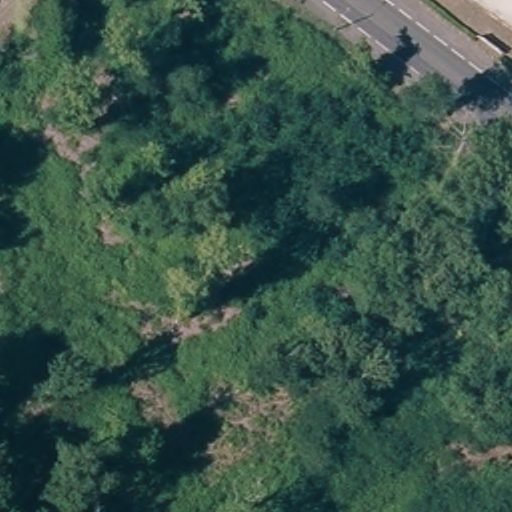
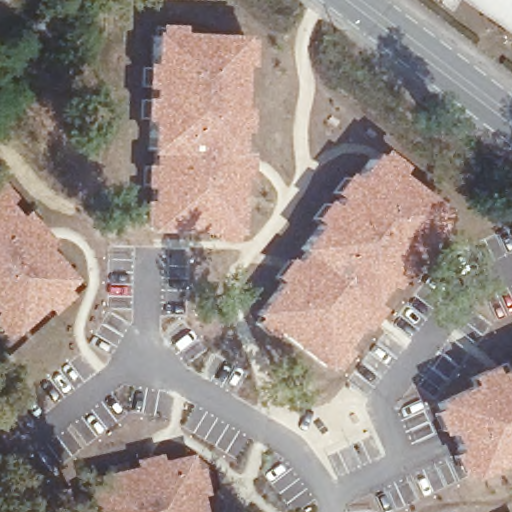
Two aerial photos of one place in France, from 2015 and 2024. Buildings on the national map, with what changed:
new [(234,42),(230,156),(238,156),(235,234),(152,229),(156,154),(147,155),(153,39),(234,42)]
new [(378,307),(324,370),(259,316),(307,254),(303,251),(374,162),(440,214),(371,301),(378,307)]
new [(14,329),(0,314),(0,204),(69,280),(14,329)]
new [(467,378),(489,368),(493,375),(512,365),(512,461),(468,481),(465,474),(461,475),(433,402),(468,382),(467,378)]
new [(188,457),(201,512),(93,512),(87,481),(188,457)]

